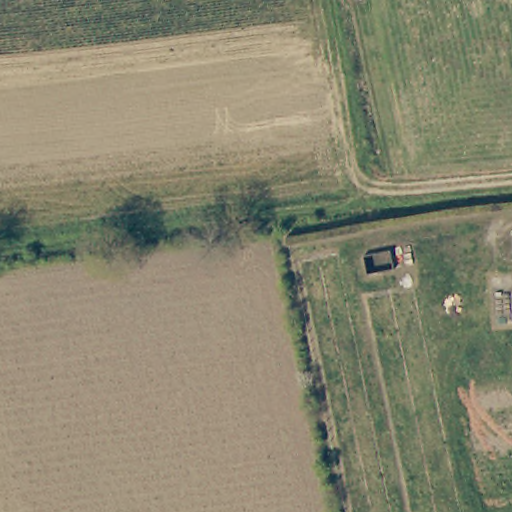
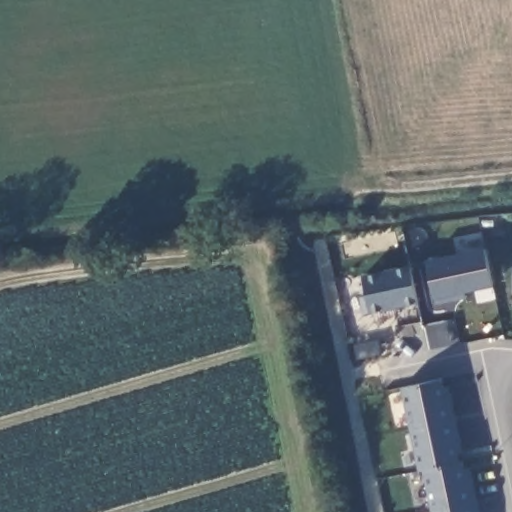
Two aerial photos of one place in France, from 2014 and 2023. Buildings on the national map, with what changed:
new [(486,249),(492,284),(451,293),(452,300),(437,302),(436,296),(427,261),(486,249)]
new [(417,306),(369,313),(362,313),(359,298),(367,297),(362,276),(410,263),(417,306)]
new [(442,378),(443,387),(449,386),(462,453),(458,454),(460,462),(463,462),(465,470),(470,467),(480,512),(433,512),(423,469),(419,471),(401,387),(442,378)]

